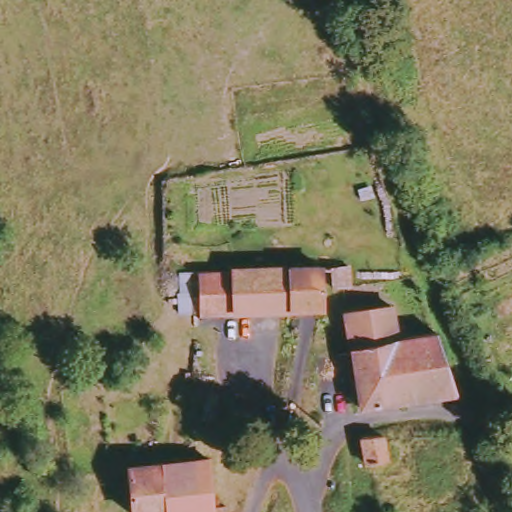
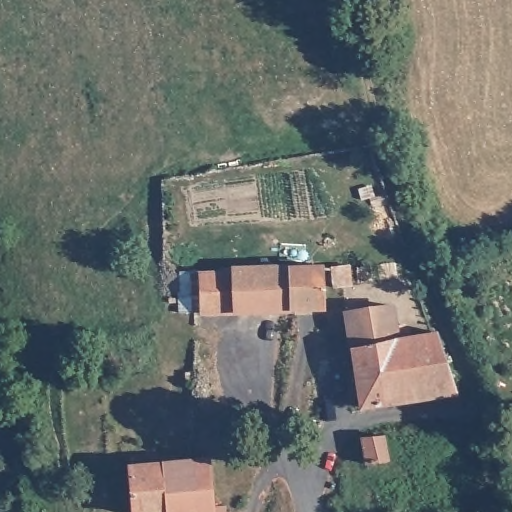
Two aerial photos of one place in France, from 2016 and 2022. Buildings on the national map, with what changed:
unchanged [(330,286),(329,267),(348,263),(352,283),(330,286)]
unchanged [(250,267),(286,266),(318,265),(319,268),(320,286),(320,309),(292,310),(231,311),(229,267),(250,267)]
unchanged [(188,268),(229,267),(231,311),(188,313),(188,268)]
unchanged [(355,352),(354,339),(350,314),(395,305),(400,343),(355,352)]
unchanged [(455,397),(363,407),(355,352),(400,343),(440,336),(455,397)]
unchanged [(385,470),(363,475),(358,448),(380,442),(385,470)]
unchanged [(194,463),(212,462),(215,509),(229,508),(230,512),(136,512),(132,470),(194,463)]

